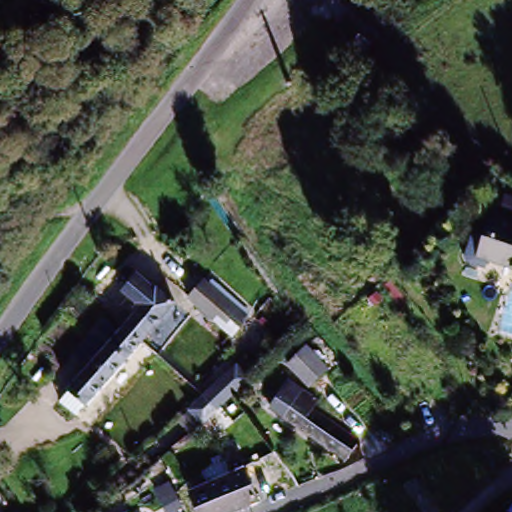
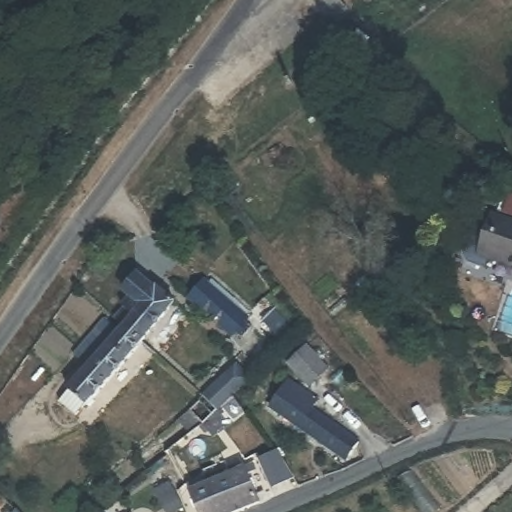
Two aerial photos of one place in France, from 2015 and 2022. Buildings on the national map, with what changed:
unchanged [(412,128),(425,112),(436,120),(423,136),(412,128)]
unchanged [(512,211),(512,268),(478,260),(492,206),(512,211)]
unchanged [(259,345),(192,293),(206,277),(271,332),(259,345)]
unchanged [(132,320),(167,280),(186,295),(152,334),(132,320)]
unchanged [(77,348),(108,312),(127,327),(95,363),(77,348)]
unchanged [(80,380),(95,363),(127,327),(132,320),(152,334),(99,395),(85,413),(66,396),(80,380)]
unchanged [(287,370),(303,356),(321,373),(306,388),(287,370)]
unchanged [(234,366),(247,377),(231,395),(216,409),(206,421),(192,409),(202,398),(234,366)]
unchanged [(287,421),(301,405),(292,398),(297,391),(314,404),(308,411),(350,439),(337,456),(287,421)]
unchanged [(271,485),(259,468),(277,458),(288,475),(271,485)]
unchanged [(208,512),(200,497),(247,471),(264,499),(240,512),(208,512)]
unchanged [(0,474),(6,481),(0,487),(0,474)]

